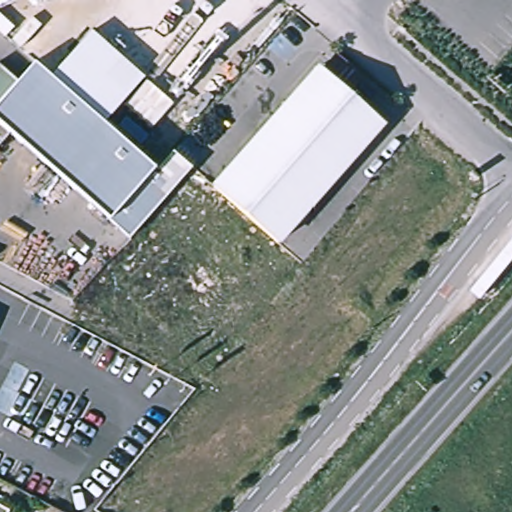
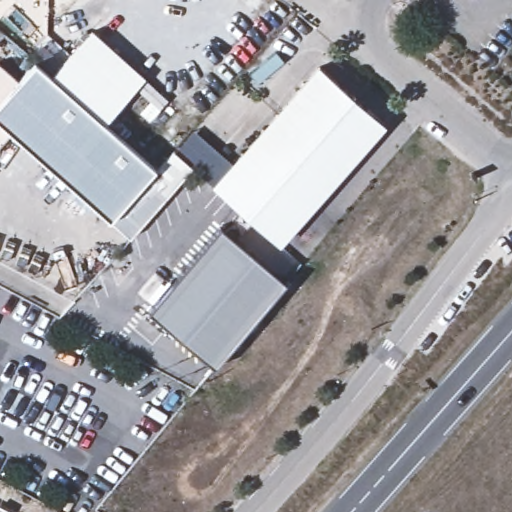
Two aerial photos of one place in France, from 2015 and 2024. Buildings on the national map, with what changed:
unchanged [(91,31),(144,77),(105,121),(52,75),(91,31)]
unchanged [(173,150),(191,166),(129,236),(10,130),(0,141),(0,64),(17,79),(34,60),(156,168),(173,150)]
unchanged [(319,67),(383,123),(278,242),(239,208),(214,186),(319,67)]
new [(285,282),(213,368),(149,312),(219,227),(285,282)]
unchanged [(0,510),(3,512),(0,512),(0,510)]

